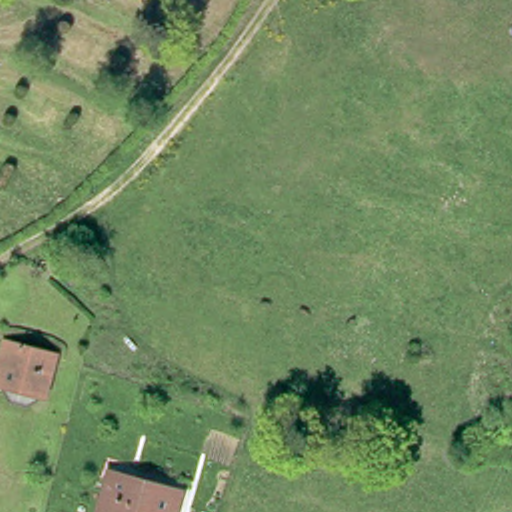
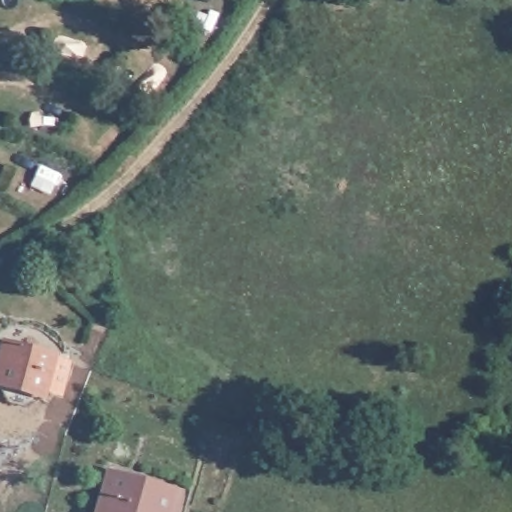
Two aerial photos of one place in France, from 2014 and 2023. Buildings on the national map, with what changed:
unchanged [(0,361),(7,343),(53,359),(36,404),(0,391),(0,361)]
unchanged [(111,476),(179,495),(174,512),(100,512),(111,476)]

